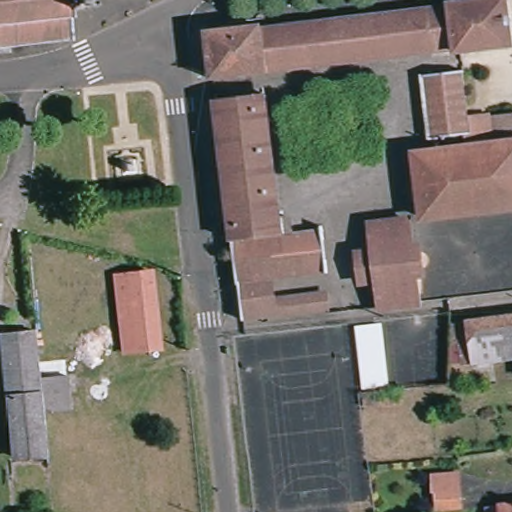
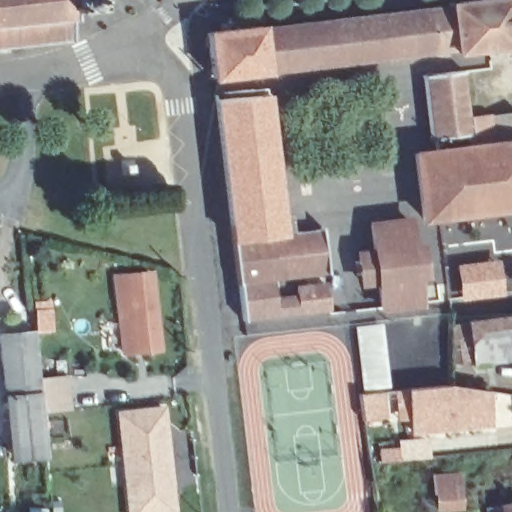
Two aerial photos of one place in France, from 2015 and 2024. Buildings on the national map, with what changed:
unchanged [(90,1),(90,5),(87,5),(87,9),(66,12),(66,16),(64,18),(67,40),(0,46),(0,0),(86,0),(86,1),(90,1)]
unchanged [(449,6),(493,0),(502,0),(507,48),(455,54),(455,51),(450,9),(449,6)]
unchanged [(203,36),(253,28),(254,32),(450,9),(455,51),(207,81),(203,36)]
unchanged [(451,76),(458,140),(422,144),(414,80),(451,76)]
unchanged [(260,97),(274,219),(280,218),(282,234),(227,242),(211,103),(260,97)]
unchanged [(512,137),(512,142),(468,147),(465,118),(510,114),(512,137)]
unchanged [(412,220),(404,156),(468,147),(512,142),(512,208),(412,220)]
unchanged [(368,283),(353,284),(350,255),(366,254),(362,226),(399,222),(402,251),(411,251),(413,278),(406,279),(410,306),(371,310),(368,283)]
unchanged [(282,234),(319,231),(324,274),(232,284),(227,242),(282,234)]
new [(503,258),(503,296),(459,300),(455,263),(503,258)]
unchanged [(148,272),(157,349),(123,353),(115,275),(148,272)]
unchanged [(296,316),(238,323),(234,292),(233,287),(282,281),(285,296),(320,292),(322,315),(317,313),(296,316)]
unchanged [(512,318),(512,359),(462,366),(457,327),(467,326),(466,324),(512,318)]
unchanged [(4,358),(0,358),(0,330),(32,328),(36,372),(39,403),(41,425),(10,427),(4,358)]
unchanged [(384,329),(388,386),(365,388),(357,330),(384,329)]
demolished [(57,362),(62,340),(94,345),(91,366),(57,362)]
unchanged [(67,374),(72,412),(40,414),(39,403),(36,379),(67,374)]
new [(410,434),(406,389),(448,385),(489,392),(492,426),(410,434)]
new [(115,411),(165,406),(175,512),(126,512),(115,411)]
unchanged [(41,425),(45,460),(12,460),(10,427),(41,425)]
new [(436,512),(430,512),(428,475),(460,472),(463,510),(436,512)]
demolished [(458,493),(460,499),(461,509),(438,511),(437,495),(458,493)]
demolished [(485,505),(467,507),(465,498),(484,497),(485,505)]
unchanged [(488,511),(503,509),(512,508),(512,512),(488,512),(488,511)]

